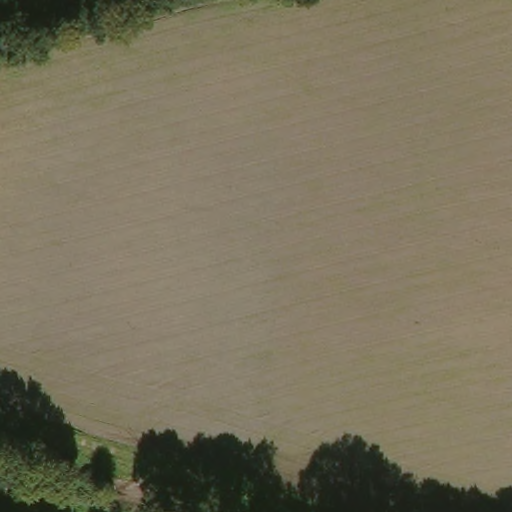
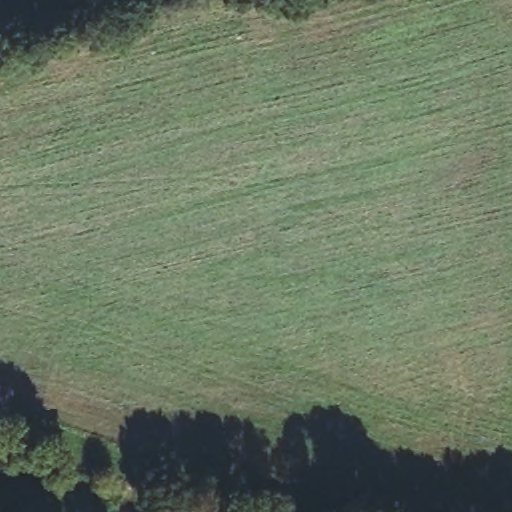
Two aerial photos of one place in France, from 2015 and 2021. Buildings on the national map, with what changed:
[]

